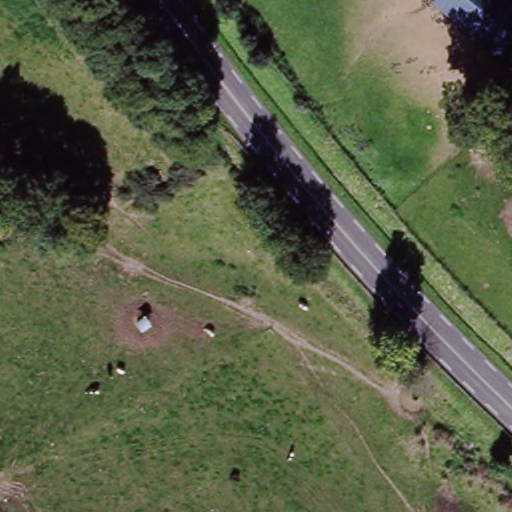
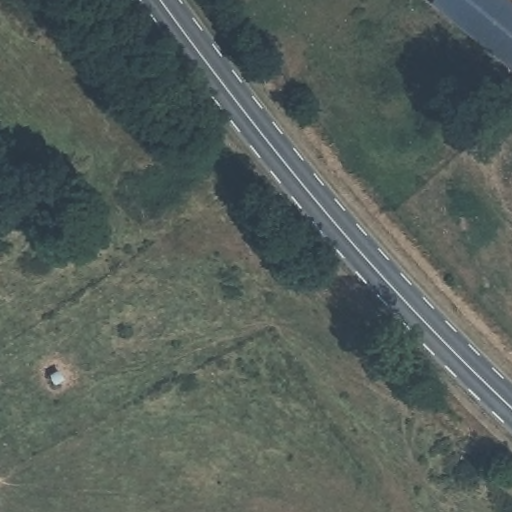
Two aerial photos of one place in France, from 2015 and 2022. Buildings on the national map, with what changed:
unchanged [(512,4),(512,77),(432,4),(435,0),(508,0),(512,4)]

